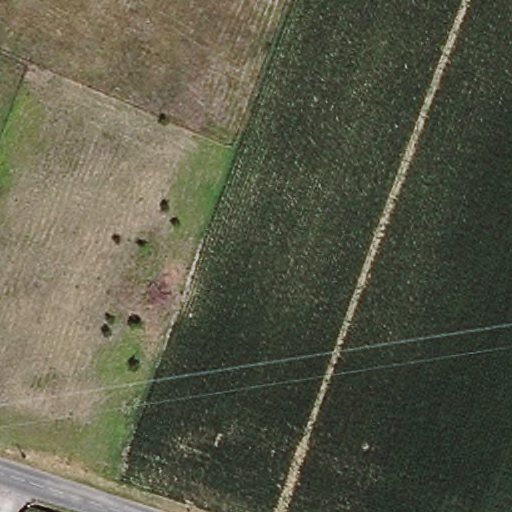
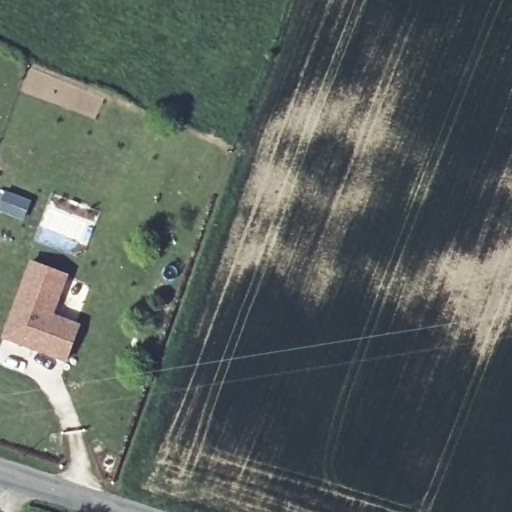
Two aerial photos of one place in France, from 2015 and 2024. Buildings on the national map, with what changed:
new [(1,339),(30,260),(67,275),(53,315),(81,326),(66,362),(1,339)]

